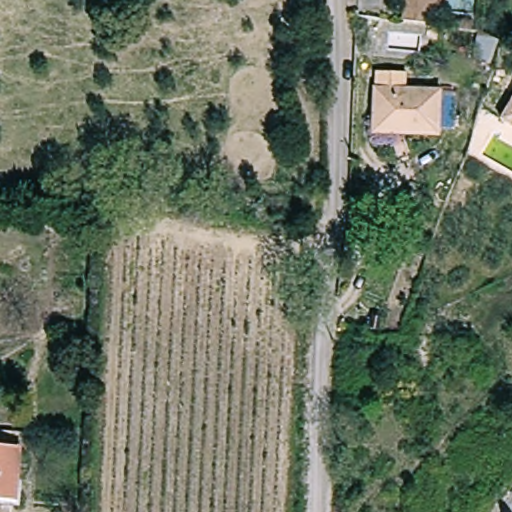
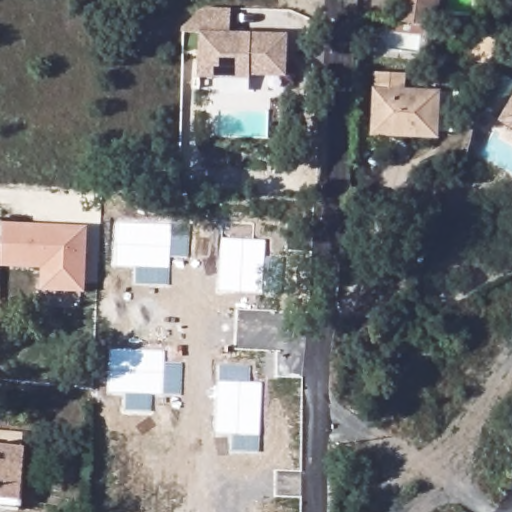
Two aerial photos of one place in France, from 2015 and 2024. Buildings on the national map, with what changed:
unchanged [(404,28),(408,0),(435,0),(430,32),(404,28)]
unchanged [(218,74),(197,74),(198,30),(180,30),(180,25),(201,6),(228,6),(228,29),(285,31),(285,72),(247,72),(247,75),(218,74)]
unchanged [(406,75),(405,94),(438,98),(434,141),(405,140),(406,135),(372,132),(375,72),(406,75)]
unchanged [(512,124),(503,119),(512,105),(512,124)]
new [(0,245),(0,222),(1,223),(87,226),(84,294),(40,293),(40,270),(0,268),(0,257),(0,245)]
new [(189,226),(188,258),(170,259),(169,286),(133,285),(135,268),(113,267),(115,226),(189,226)]
new [(265,241),(265,258),(283,259),(280,294),(217,292),(220,239),(265,241)]
new [(166,353),(165,363),(182,364),(182,396),(153,395),(152,412),(124,411),(125,393),(107,392),(110,351),(166,353)]
new [(250,368),(250,383),(262,385),(259,454),(231,453),(231,437),(215,436),(219,367),(250,368)]
unchanged [(22,448),(22,503),(0,502),(0,447),(22,448)]

